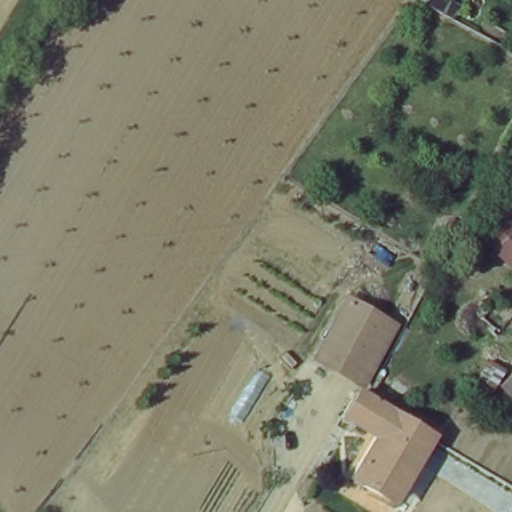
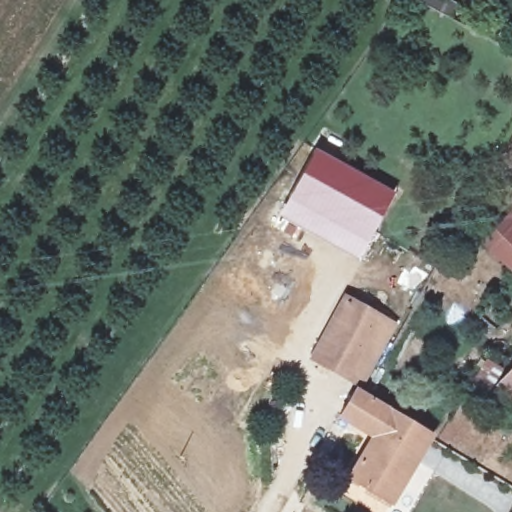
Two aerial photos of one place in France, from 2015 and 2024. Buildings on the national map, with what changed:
new [(279,217),(315,150),(393,194),(358,259),(279,217)]
unchanged [(512,205),(512,283),(473,242),(512,205)]
unchanged [(358,383),(350,379),(318,363),(350,302),(381,319),(390,323),(358,383)]
unchanged [(512,363),(512,404),(497,387),(512,363)]
unchanged [(360,400),(405,427),(392,446),(415,461),(388,503),(351,479),(376,439),(347,420),(360,400)]

